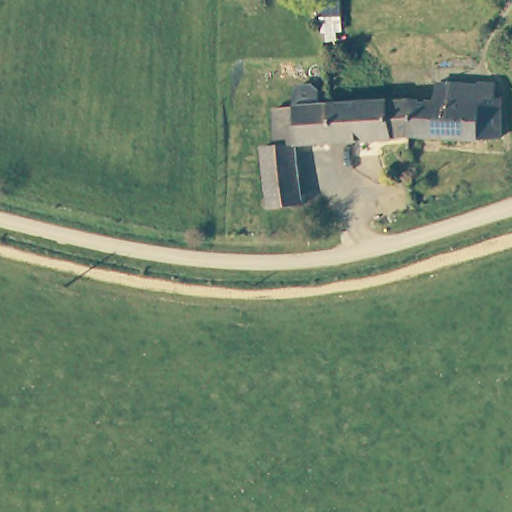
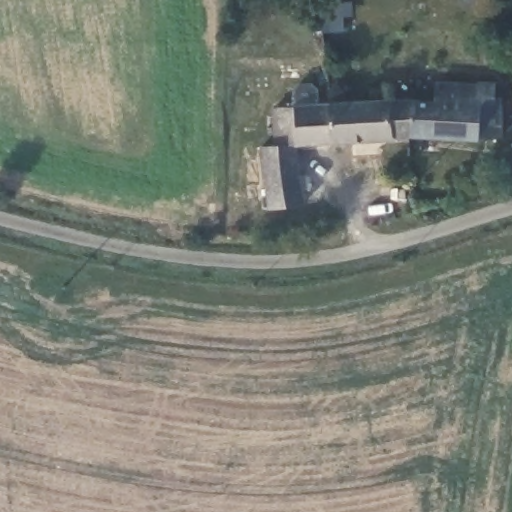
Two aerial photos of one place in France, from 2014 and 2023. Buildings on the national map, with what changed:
unchanged [(439,100),(439,82),(455,82),(496,84),(496,91),(502,91),(502,140),(412,135),(413,99),(439,100)]
unchanged [(333,104),(382,101),(413,99),(412,135),(298,145),(278,146),(274,108),(333,104)]
unchanged [(305,204),(272,207),(265,147),(278,146),(298,145),(305,204)]

